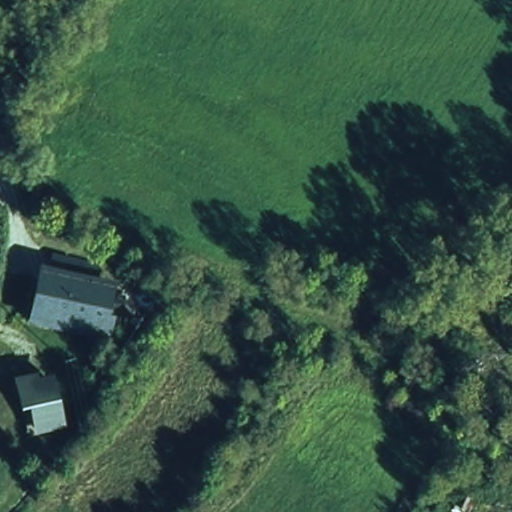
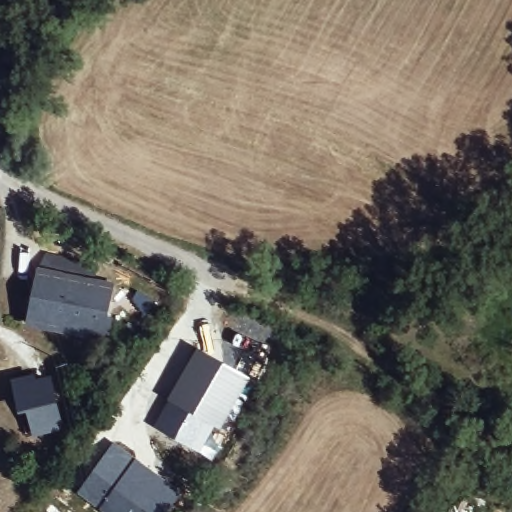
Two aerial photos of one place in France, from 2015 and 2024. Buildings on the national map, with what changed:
unchanged [(54,247),(93,255),(91,277),(110,283),(105,337),(28,330),(38,265),(49,268),(54,247)]
new [(173,439),(152,426),(166,398),(196,347),(251,379),(219,430),(216,428),(200,453),(173,439)]
unchanged [(35,373),(38,383),(53,382),(66,439),(33,444),(27,415),(15,417),(8,383),(35,373)]
new [(183,494),(170,512),(102,512),(76,491),(113,440),(183,494)]

